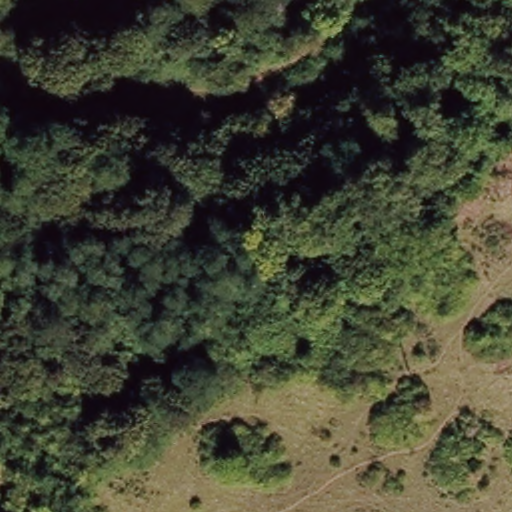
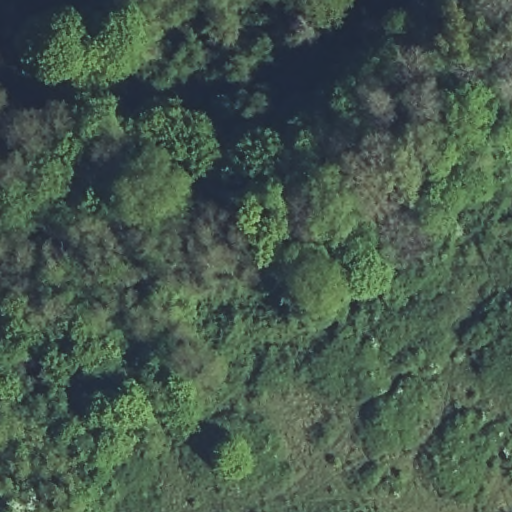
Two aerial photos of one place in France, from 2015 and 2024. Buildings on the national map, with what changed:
[]

